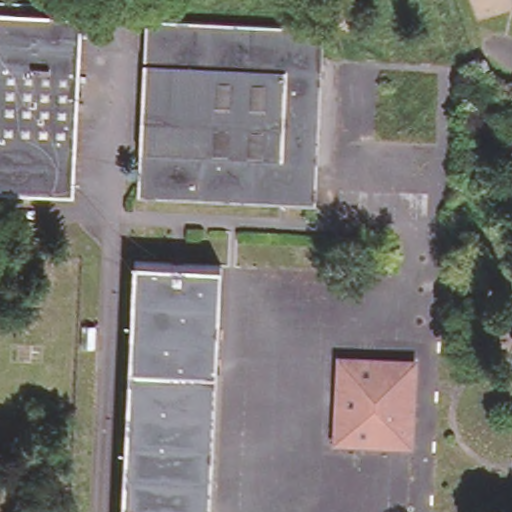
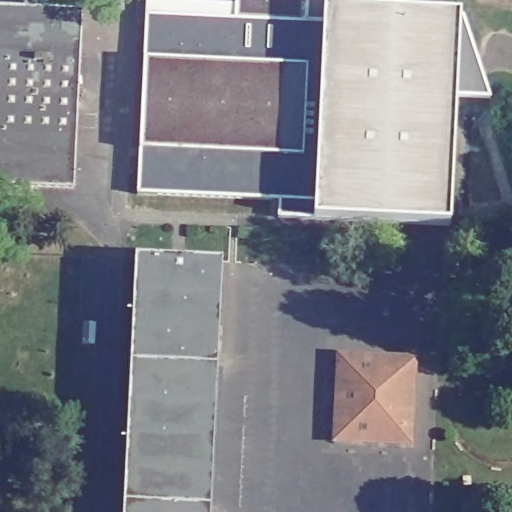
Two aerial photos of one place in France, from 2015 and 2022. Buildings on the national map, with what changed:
new [(308,21),(146,14),(144,14),(135,22),(137,0),(235,4),(235,0),(309,0),(308,21)]
unchanged [(0,184),(0,6),(79,10),(70,188),(0,184)]
new [(324,22),(324,10),(459,17),(462,17),(489,99),(455,89),(449,227),(314,220),(315,200),(312,200),(315,165),(320,59),(321,22),(324,22)]
unchanged [(312,200),(135,192),(144,14),(321,22),(320,59),(315,165),(312,200)]
unchanged [(206,512),(120,512),(132,256),(219,260),(206,512)]
unchanged [(362,355),(420,357),(417,442),(359,440),(344,423),(346,368),(362,355)]

